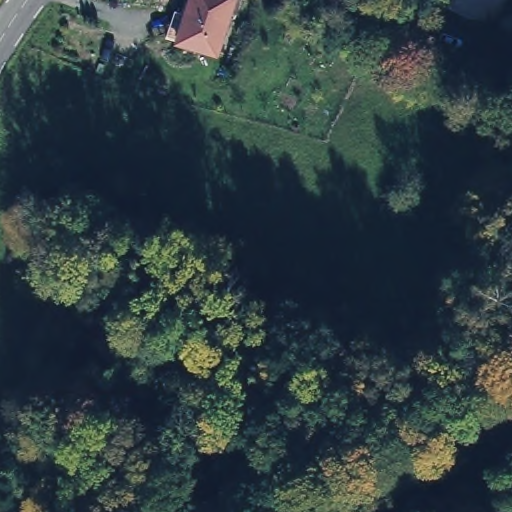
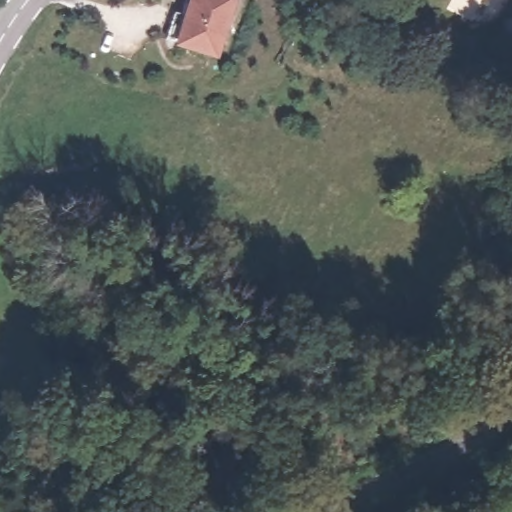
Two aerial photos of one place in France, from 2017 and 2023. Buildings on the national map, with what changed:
unchanged [(233,1),(213,61),(175,46),(191,0),(232,0),(233,1)]

